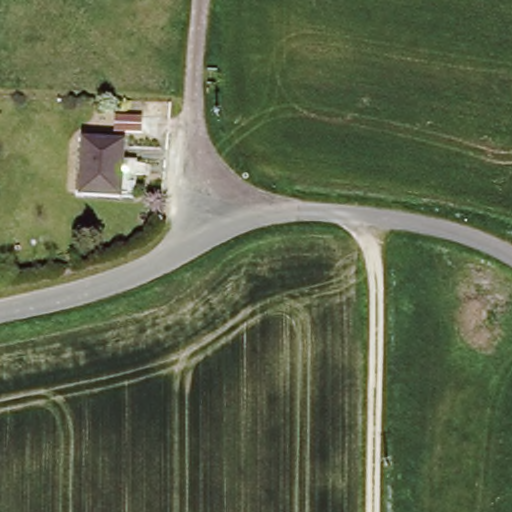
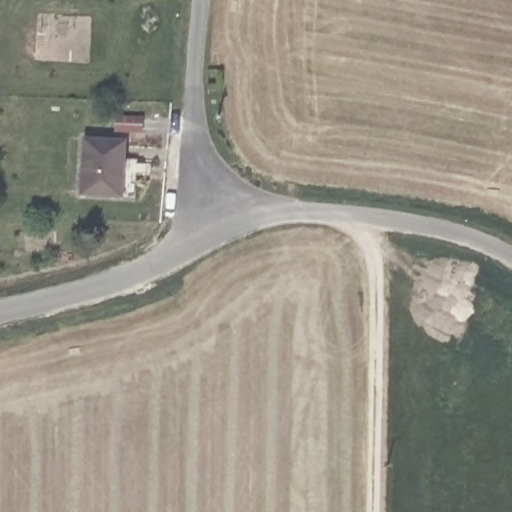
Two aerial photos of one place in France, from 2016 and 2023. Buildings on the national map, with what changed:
unchanged [(123,142),(118,196),(79,193),(84,139),(123,142)]

